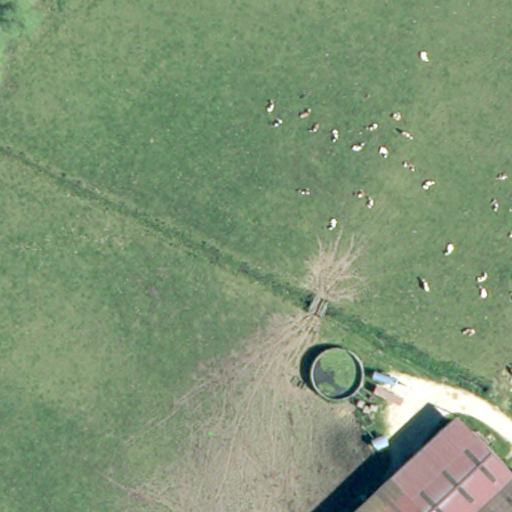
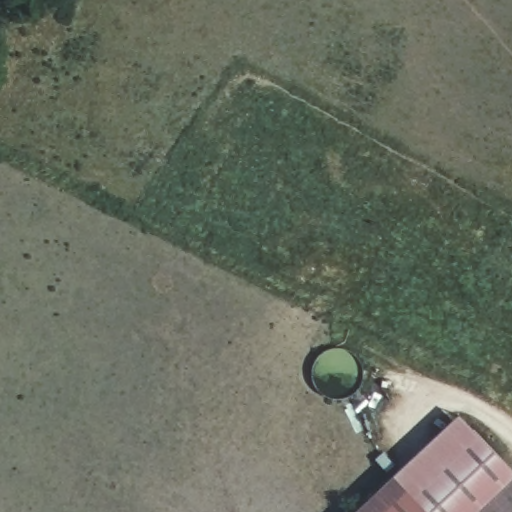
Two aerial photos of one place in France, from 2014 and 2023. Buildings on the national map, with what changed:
unchanged [(462,414),(474,428),(384,512),(358,512),(462,414)]
unchanged [(512,467),(512,512),(384,512),(474,428),(512,467)]

